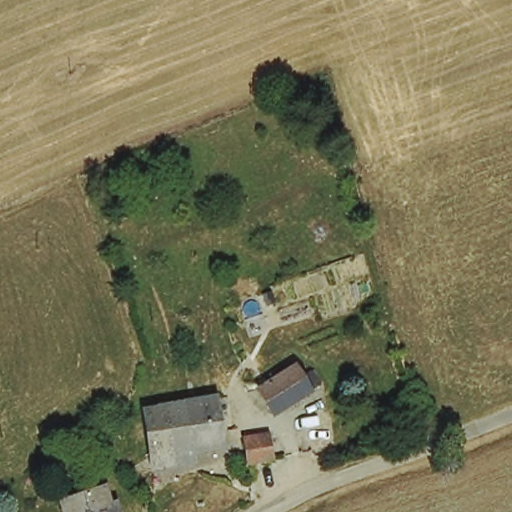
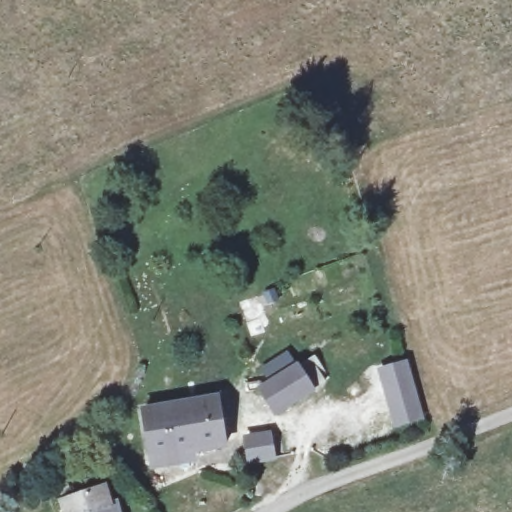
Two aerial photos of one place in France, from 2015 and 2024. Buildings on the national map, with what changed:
new [(408,358),(424,419),(394,429),(376,369),(408,358)]
unchanged [(275,411),(261,386),(276,376),(296,362),(313,388),(275,411)]
unchanged [(171,406),(221,400),(226,447),(176,453),(171,406)]
unchanged [(149,456),(145,408),(171,406),(176,453),(149,456)]
unchanged [(271,453),(246,456),(246,429),(269,427),(271,453)]
unchanged [(83,482),(105,479),(112,512),(64,512),(57,490),(83,482)]

